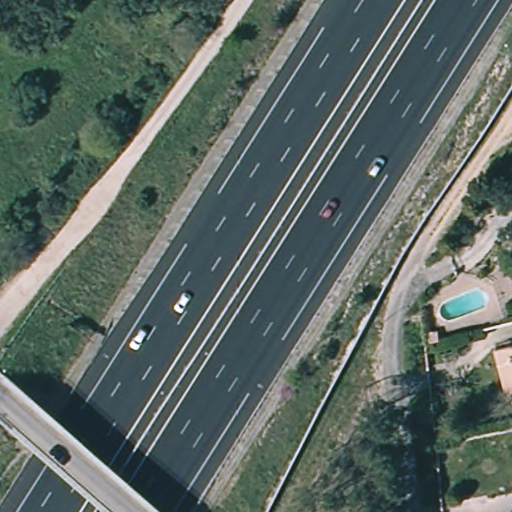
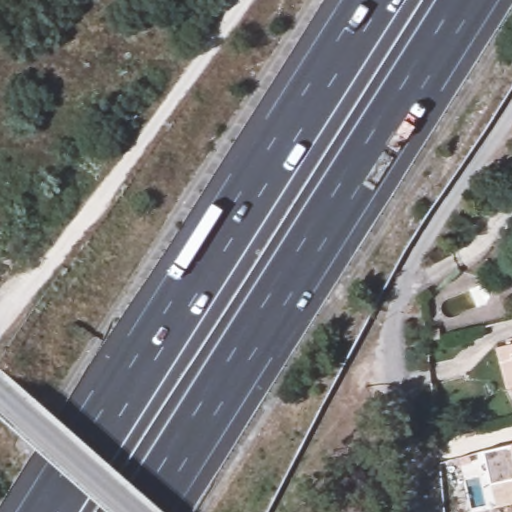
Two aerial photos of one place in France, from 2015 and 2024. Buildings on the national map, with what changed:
unchanged [(429,331),(440,328),(442,338),(431,341),(429,331)]
unchanged [(505,389),(496,348),(512,344),(512,388),(505,389)]
new [(496,504),(491,484),(484,451),(512,445),(512,442),(512,502),(496,504)]

